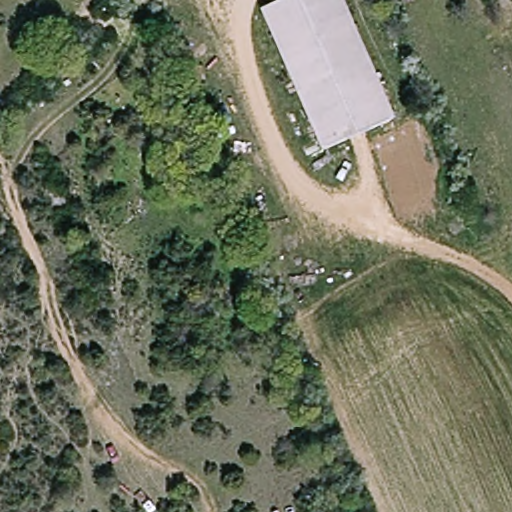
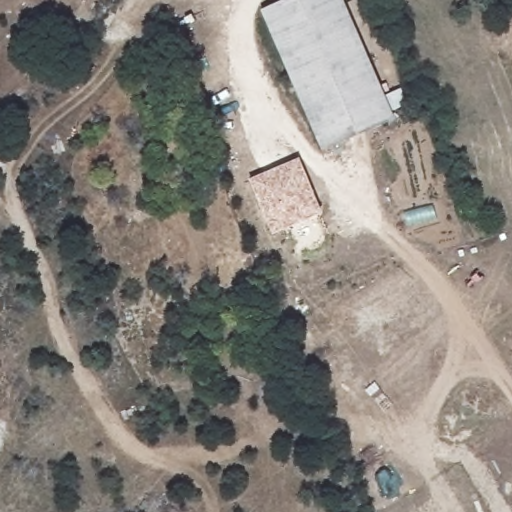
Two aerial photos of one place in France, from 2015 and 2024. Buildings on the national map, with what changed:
unchanged [(383,122),(316,150),(259,13),(290,0),(332,0),(383,122)]
new [(322,214),(281,231),(271,232),(250,181),(298,161),(322,214)]

